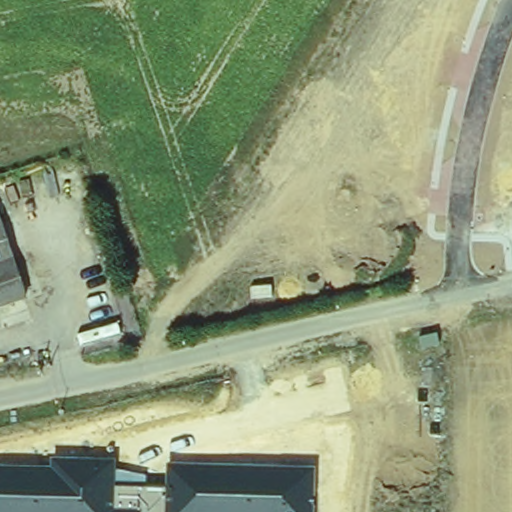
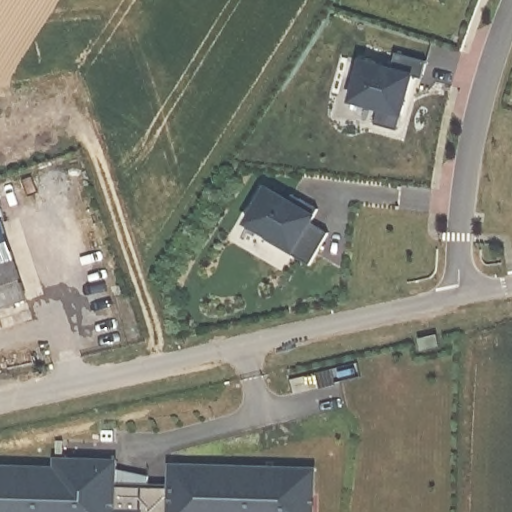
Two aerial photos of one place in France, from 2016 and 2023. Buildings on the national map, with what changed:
new [(358,61),(388,69),(393,53),(423,62),(419,85),(410,83),(396,130),(371,123),(377,109),(347,100),(358,61)]
new [(287,201),(291,194),(298,198),(316,209),(309,222),(327,233),(308,265),(264,240),(267,235),(245,222),(265,188),(287,201)]
unchanged [(28,305),(0,312),(0,225),(28,305)]
unchanged [(50,467),(50,458),(113,460),(113,471),(145,478),(145,486),(167,488),(167,465),(311,467),(311,512),(0,512),(0,467),(50,467)]

